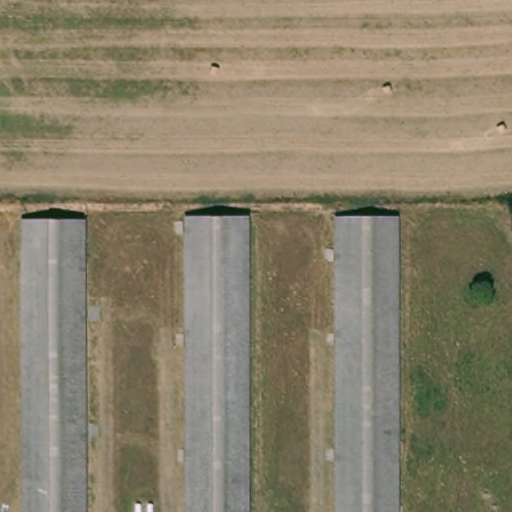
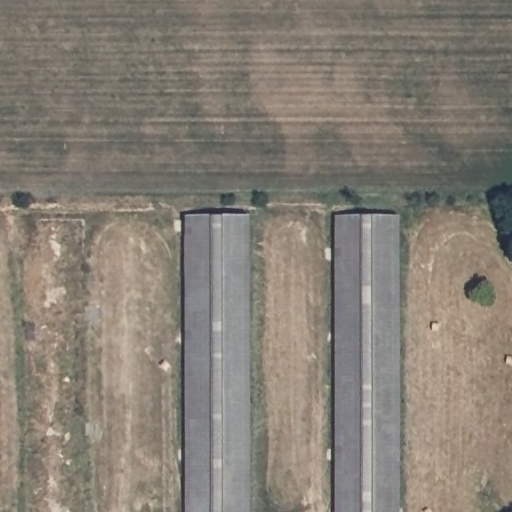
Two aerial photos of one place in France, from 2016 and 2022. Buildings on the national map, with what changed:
unchanged [(191,219),(249,217),(246,512),(188,512),(191,219)]
unchanged [(399,218),(399,512),(338,512),(338,219),(399,218)]
demolished [(86,221),(84,512),(25,512),(26,221),(86,221)]

